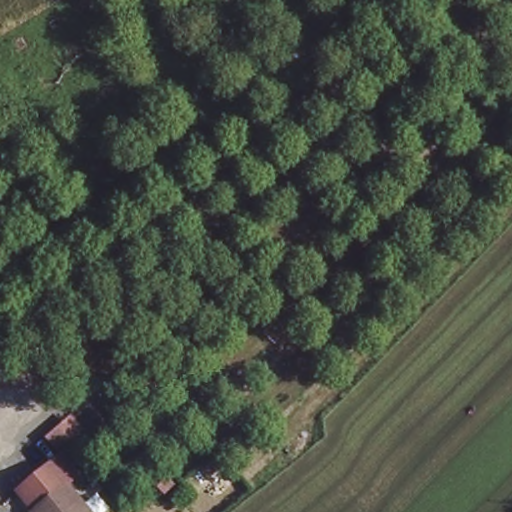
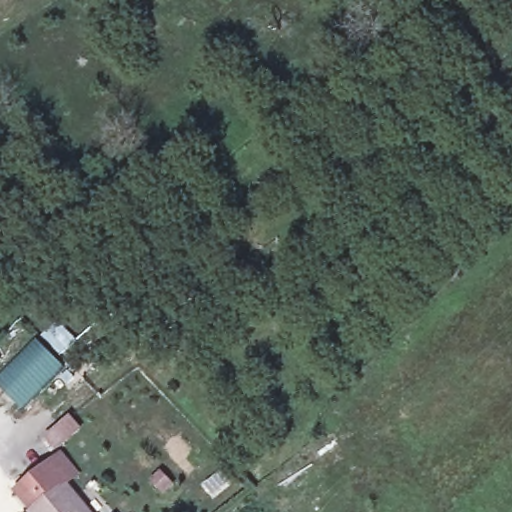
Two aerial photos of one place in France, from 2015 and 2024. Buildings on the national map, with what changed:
new [(51,346),(41,336),(57,320),(77,340),(55,358),(62,366),(22,407),(0,385),(0,378),(37,340),(47,350),(51,346)]
unchanged [(55,470),(91,512),(32,512),(21,498),(55,470)]

